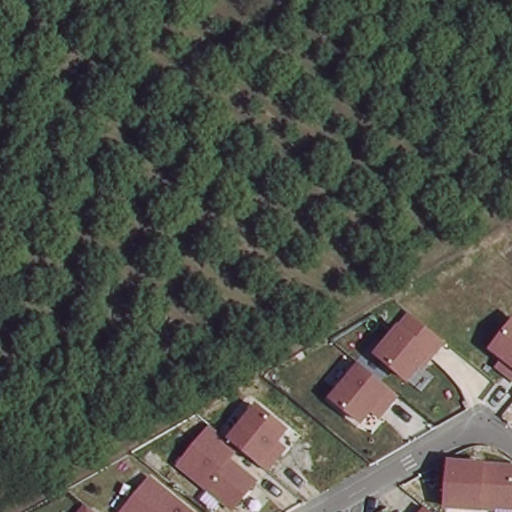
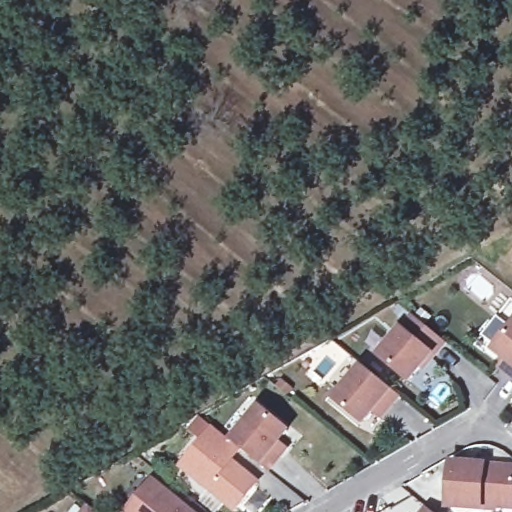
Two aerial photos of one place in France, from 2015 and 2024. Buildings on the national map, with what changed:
unchanged [(424,376),(421,374),(411,386),(373,357),(401,323),(410,313),(448,344),(424,376)]
unchanged [(501,360),(490,351),(512,322),(512,383),(495,367),(501,360)]
unchanged [(383,422),(375,416),(365,426),(331,400),(360,364),(403,399),(383,422)]
unchanged [(238,512),(233,512),(177,470),(211,427),(227,440),(258,403),(292,432),(283,443),(293,451),(273,475),(242,452),(234,462),(262,484),(238,512)]
unchanged [(448,460),(512,464),(512,512),(506,512),(446,510),(448,460)]
unchanged [(153,476),(200,512),(124,512),(153,476)]
unchanged [(87,504),(96,512),(80,512),(87,504)]

